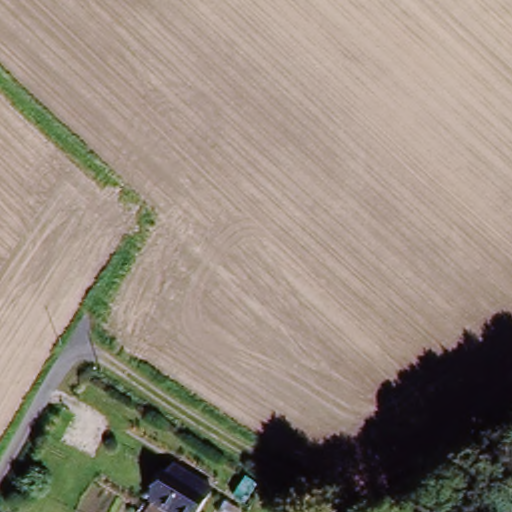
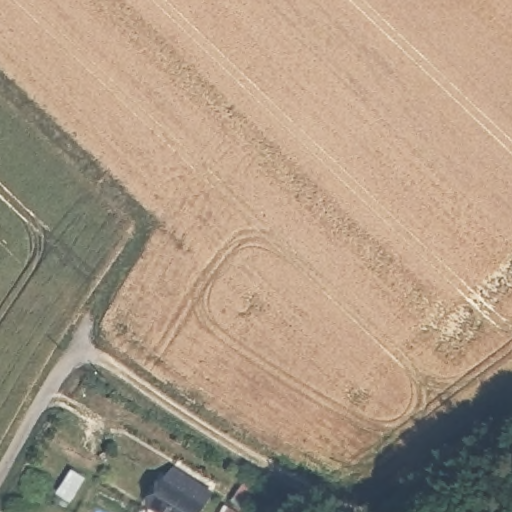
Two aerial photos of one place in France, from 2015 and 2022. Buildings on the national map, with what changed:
unchanged [(210,493),(199,512),(153,512),(146,508),(169,471),(210,493)]
unchanged [(512,495),(512,507),(510,510),(498,500),(488,512),(473,512),(471,511),(496,481),(512,495)]

